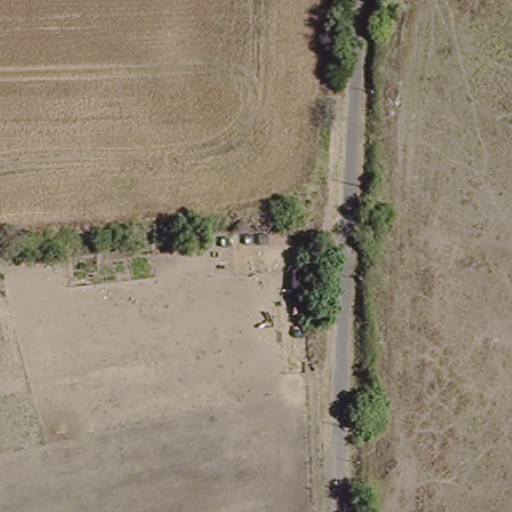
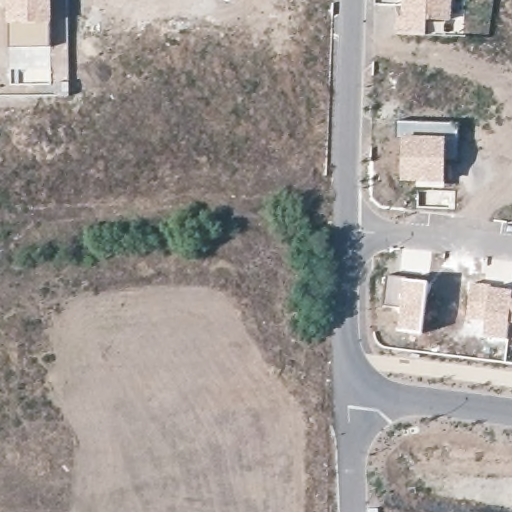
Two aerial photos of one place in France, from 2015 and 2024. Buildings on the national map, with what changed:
new [(53,23),(7,24),(5,0),(53,0),(53,23)]
new [(400,0),(453,0),(452,21),(429,21),(427,35),(397,34),(400,0)]
new [(53,46),(68,44),(70,94),(52,95),(52,92),(52,84),(53,46)]
new [(396,138),(396,121),(459,123),(459,136),(457,136),(447,136),(445,184),(400,182),(401,138),(396,138)]
new [(386,274),(430,282),(423,335),(397,331),(399,310),(381,307),(386,274)]
new [(512,289),(512,325),(511,325),(509,341),(482,337),(483,322),(465,319),(470,281),(512,289)]

